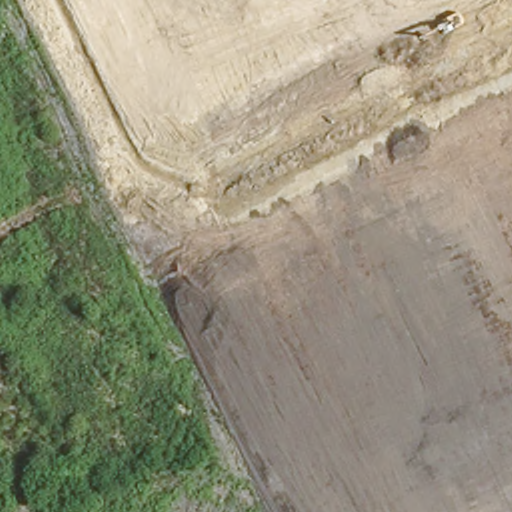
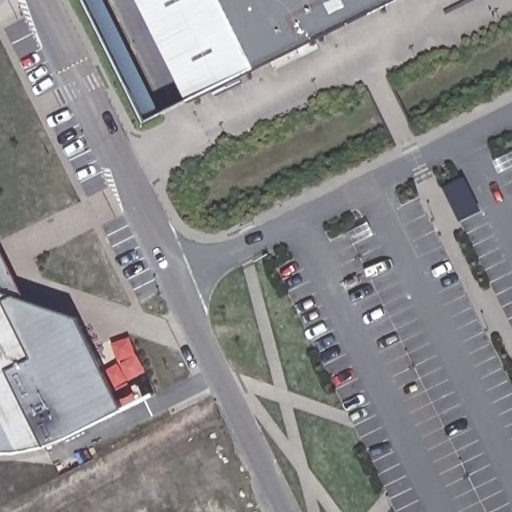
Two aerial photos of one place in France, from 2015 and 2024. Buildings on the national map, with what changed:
new [(256,69),(185,102),(135,0),(394,0),(256,69)]
new [(17,308),(73,323),(118,418),(44,456),(18,462),(0,464),(0,272),(17,308)]

